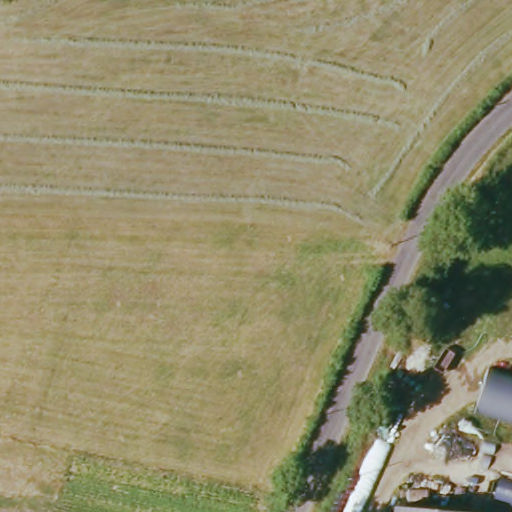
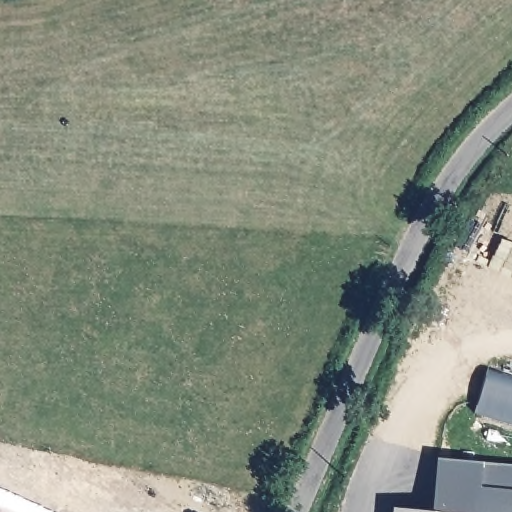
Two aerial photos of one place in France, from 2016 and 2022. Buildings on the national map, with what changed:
unchanged [(491,374),(512,380),(512,424),(478,413),(491,374)]
new [(512,461),(512,512),(445,512),(434,511),(434,455),(512,461)]
unchanged [(449,512),(401,512),(401,507),(449,512)]

